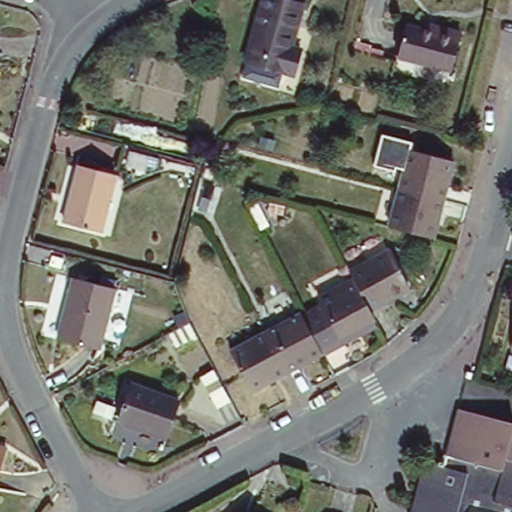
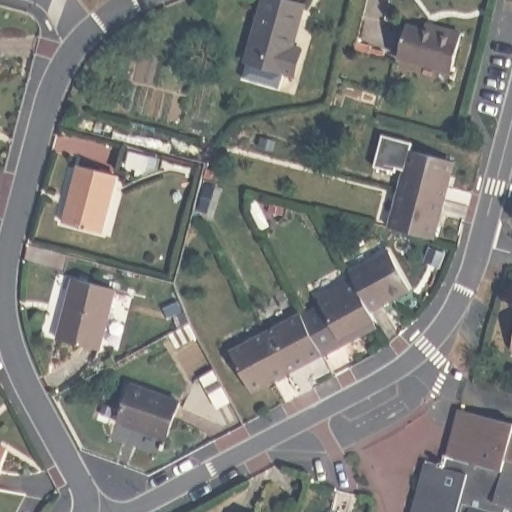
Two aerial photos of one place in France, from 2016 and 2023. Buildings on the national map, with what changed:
unchanged [(307,3),(296,45),(304,48),(296,77),(284,73),(281,85),(243,74),(263,0),(295,0),(307,3)]
unchanged [(430,32),(432,27),(438,28),(466,36),(457,72),(405,59),(413,28),(430,32)]
unchanged [(376,163),(384,134),(417,142),(414,155),(409,153),(405,171),(376,163)]
unchanged [(409,153),(453,164),(443,202),(399,191),(409,153)]
unchanged [(79,174),(116,184),(104,232),(66,221),(79,174)]
unchanged [(399,191),(443,202),(432,242),(389,230),(399,191)]
unchanged [(388,248),(411,291),(371,311),(353,276),(349,269),(388,248)]
unchanged [(75,276),(115,288),(97,349),(59,337),(75,276)]
unchanged [(379,325),(324,354),(323,351),(302,313),(322,302),(318,295),(353,276),(371,311),(376,319),(379,325)]
unchanged [(301,311),(302,311),(302,313),(323,351),(286,371),(265,331),(301,311)]
unchanged [(506,343),(512,319),(512,345),(506,343)]
unchanged [(252,390),(230,350),(265,331),(286,371),(252,390)]
unchanged [(138,380),(184,396),(171,432),(125,417),(138,380)]
unchanged [(460,407),(512,421),(512,464),(510,463),(507,474),(452,459),(451,466),(445,465),(460,407)]
unchanged [(0,467),(0,446),(6,448),(0,467)]
unchanged [(443,470),(445,465),(451,466),(452,459),(507,474),(510,463),(512,464),(512,512),(417,512),(431,467),(443,470)]

